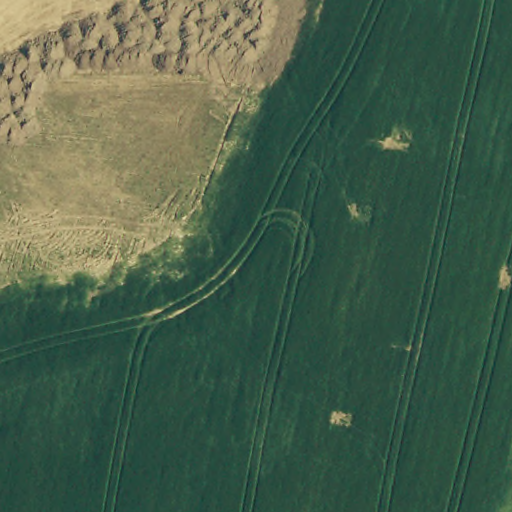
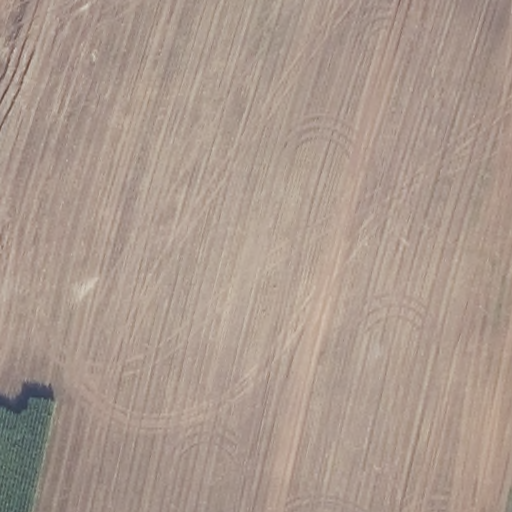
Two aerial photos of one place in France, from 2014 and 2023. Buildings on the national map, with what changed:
[]

